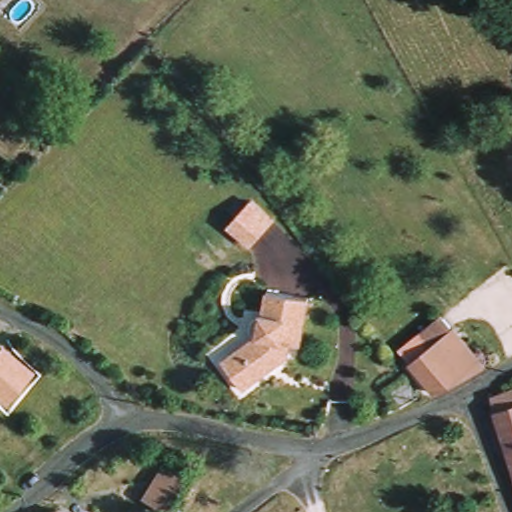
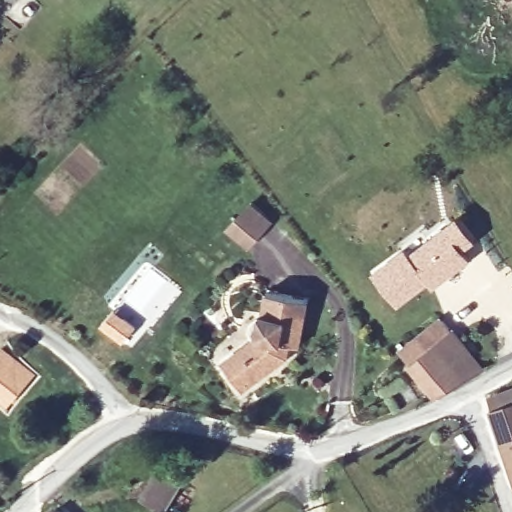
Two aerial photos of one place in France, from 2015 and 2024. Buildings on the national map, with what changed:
unchanged [(226,224),(247,210),(253,205),(268,224),(261,229),(240,246),(226,224)]
new [(429,279),(399,302),(374,272),(404,248),(409,253),(443,226),(455,216),(472,238),(460,247),(468,256),(444,275),(434,284),(429,279)]
unchanged [(223,352),(256,335),(262,313),(269,315),(274,294),(314,304),(303,345),(289,343),(286,362),(240,384),(223,352)]
unchanged [(470,370),(433,388),(411,353),(447,325),(470,370)]
unchanged [(0,397),(0,353),(5,347),(37,376),(28,384),(17,396),(8,404),(0,397)]
unchanged [(495,413),(491,398),(512,392),(512,470),(493,414),(495,413)]
unchanged [(145,499),(166,469),(185,480),(165,512),(162,512),(145,499)]
unchanged [(51,510),(53,512),(49,512),(51,510)]

